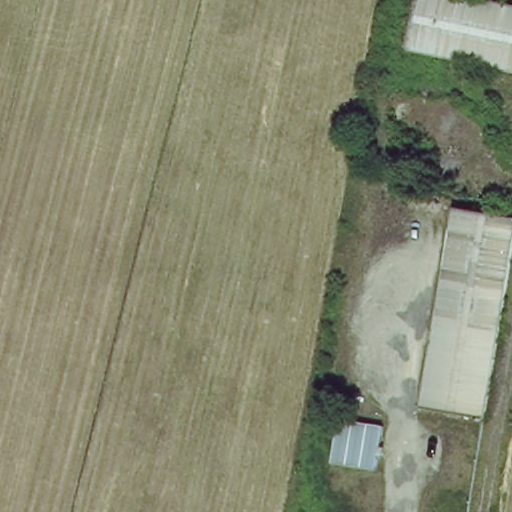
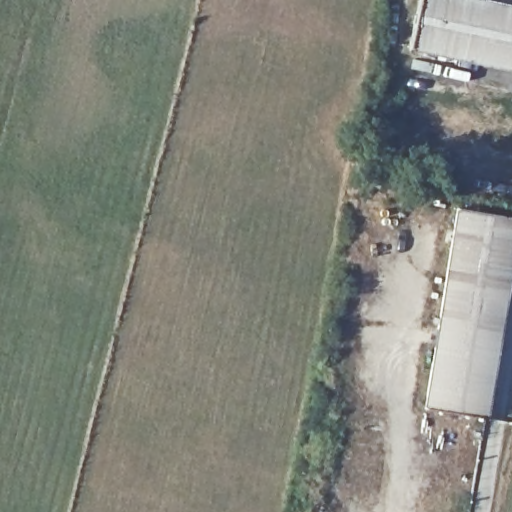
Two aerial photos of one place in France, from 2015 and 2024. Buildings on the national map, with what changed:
unchanged [(422,0),(493,0),(512,4),(512,65),(412,46),(422,0)]
unchanged [(433,406),(463,208),(512,215),(512,279),(491,413),(433,406)]
demolished [(379,471),(336,464),(343,418),(386,426),(379,471)]

